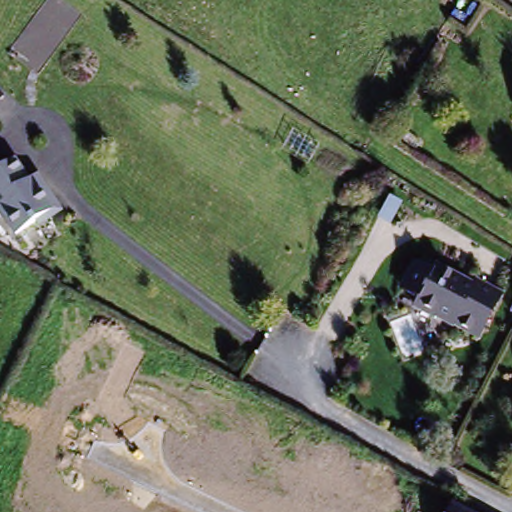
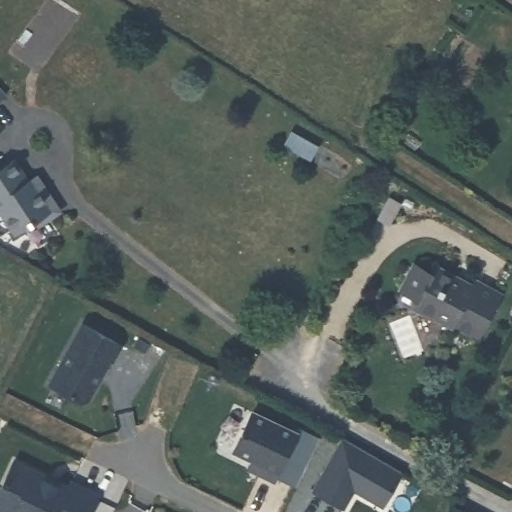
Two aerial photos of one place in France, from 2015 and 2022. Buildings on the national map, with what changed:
unchanged [(32,184),(45,179),(64,212),(18,236),(0,211),(0,177),(19,168),(32,184)]
unchanged [(481,339),(456,326),(455,328),(436,318),(435,319),(421,312),(422,309),(417,308),(421,300),(404,291),(417,265),(435,275),(439,268),(460,280),(459,283),(474,290),(478,283),(504,297),(481,339)]
new [(87,319),(127,339),(119,353),(117,352),(90,403),(84,404),(51,386),(87,319)]
new [(257,409),(302,434),(278,478),(263,470),(268,461),(240,446),(257,409)]
new [(403,469),(384,503),(362,491),(362,489),(356,484),(344,506),(315,489),(344,437),(403,469)]
new [(50,477),(48,480),(69,490),(72,482),(100,495),(91,512),(30,512),(19,507),(17,512),(9,512),(0,508),(0,494),(17,461),(50,477)]
unchanged [(454,508),(462,512),(451,512),(454,508)]

